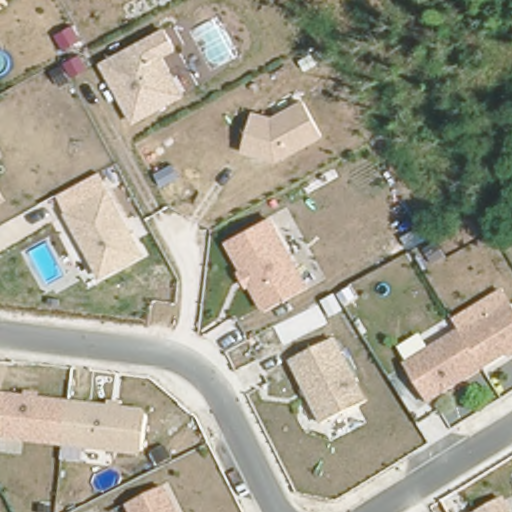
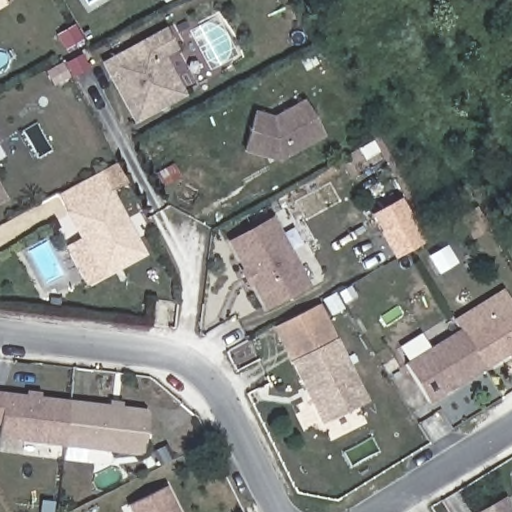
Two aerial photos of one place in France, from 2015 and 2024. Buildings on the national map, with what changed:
unchanged [(179,49),(165,56),(187,95),(133,124),(99,60),(165,25),(179,49)]
unchanged [(274,115),(304,97),(325,135),(278,161),(240,151),(253,109),(274,115)]
unchanged [(0,203),(0,185),(8,200),(0,203)]
unchanged [(145,252),(99,277),(64,210),(110,186),(145,252)]
new [(403,199),(427,245),(399,260),(375,214),(403,199)]
unchanged [(274,215),(313,285),(264,311),(250,285),(246,287),(236,270),(240,267),(226,240),(274,215)]
new [(292,361),(274,325),(319,302),(338,338),(292,361)]
unchanged [(461,327),(464,332),(512,304),(512,357),(509,359),(507,354),(429,403),(404,361),(461,327)]
unchanged [(369,400),(322,423),(292,361),(338,338),(369,400)]
unchanged [(144,449),(138,455),(0,439),(0,391),(24,395),(25,389),(40,390),(40,396),(109,404),(109,399),(123,400),(122,405),(143,406),(148,415),(144,449)]
unchanged [(129,512),(125,505),(168,485),(181,512),(129,512)]
unchanged [(504,512),(480,512),(498,501),(504,512)]

